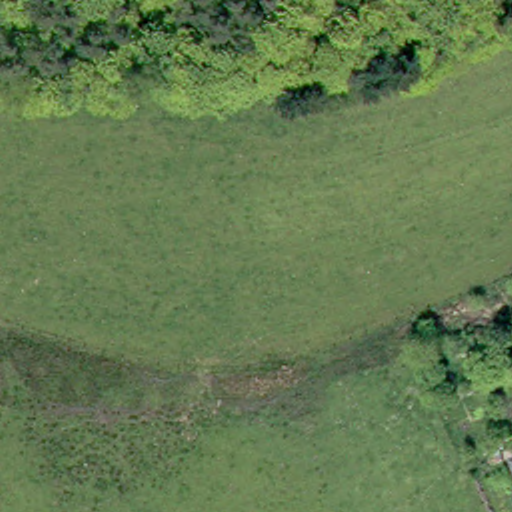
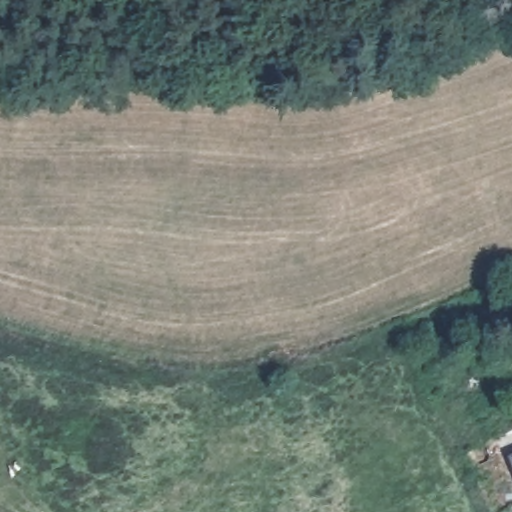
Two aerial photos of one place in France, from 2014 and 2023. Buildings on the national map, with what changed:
unchanged [(512,460),(509,453),(512,452),(512,460)]

